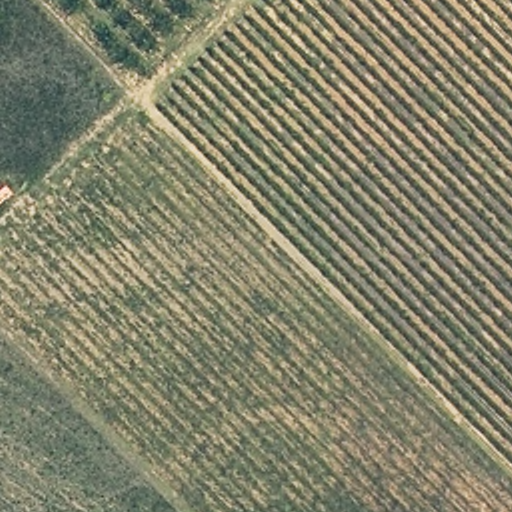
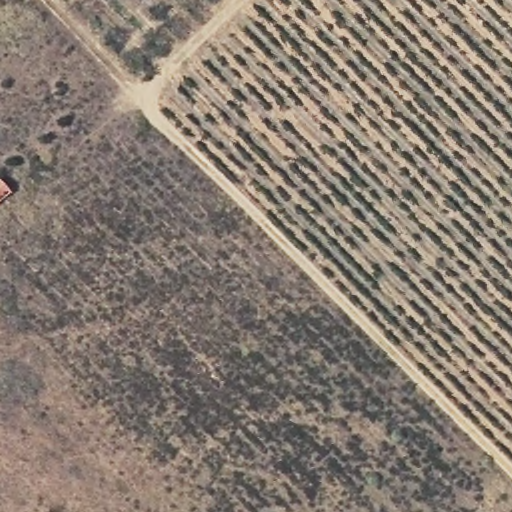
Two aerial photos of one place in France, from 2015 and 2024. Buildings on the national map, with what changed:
unchanged [(8,189),(0,196),(0,180),(8,189)]

